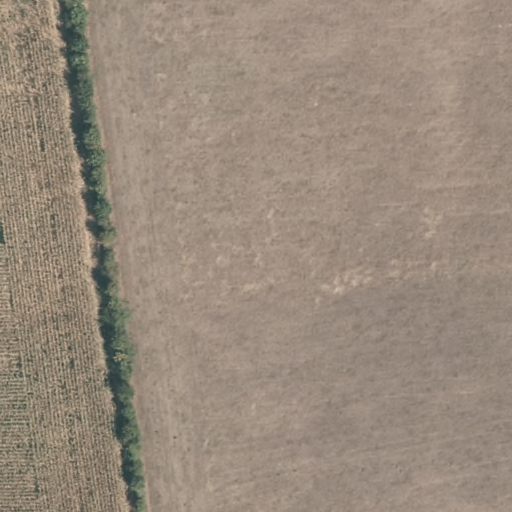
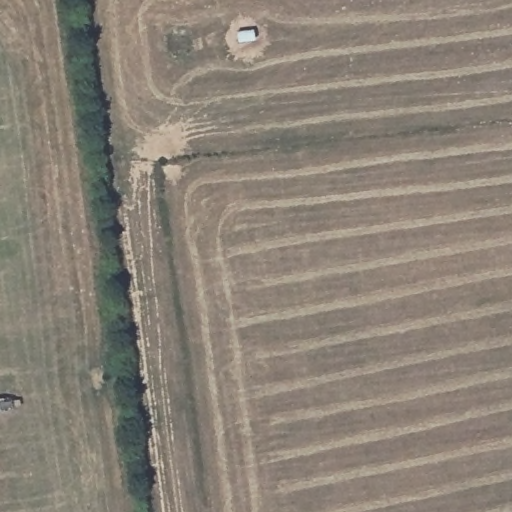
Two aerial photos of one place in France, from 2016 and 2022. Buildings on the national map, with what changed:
[]

